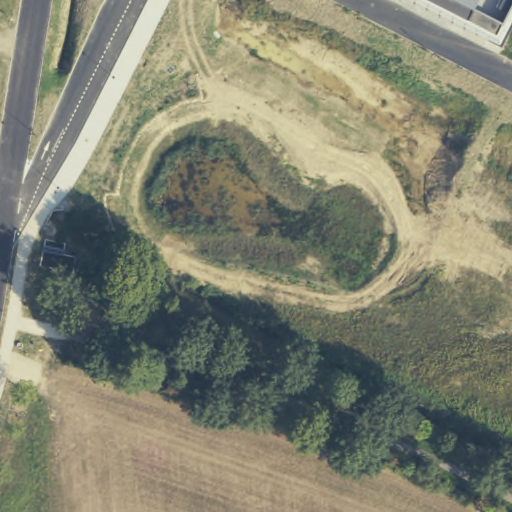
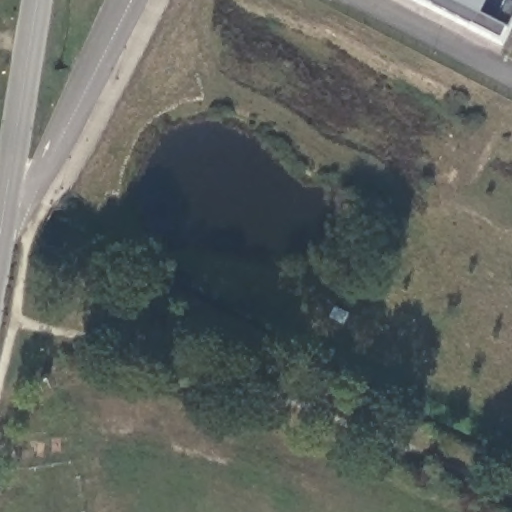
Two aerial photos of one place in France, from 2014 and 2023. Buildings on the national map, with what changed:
unchanged [(512,0),(512,14),(498,41),(418,0),(512,0)]

